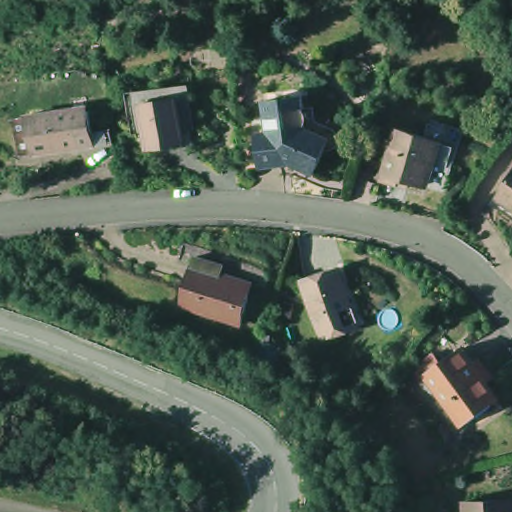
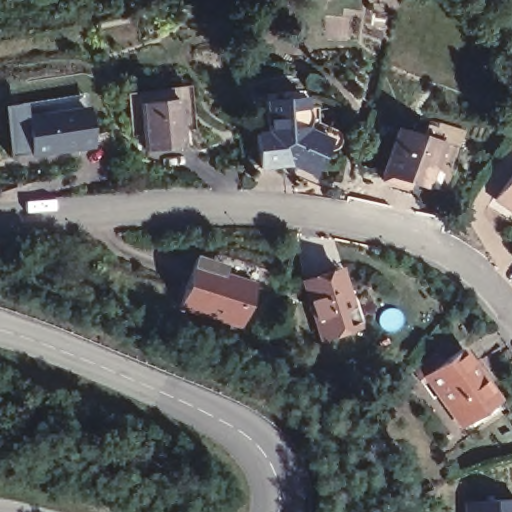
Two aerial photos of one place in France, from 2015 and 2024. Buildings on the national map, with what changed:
unchanged [(300,161),(290,160),(267,163),(263,129),(275,128),(271,96),(308,91),(310,104),(322,102),(325,116),(339,124),(345,129),(343,140),(342,143),(335,144),(331,143),(320,169),(300,161)]
unchanged [(190,139),(154,144),(148,99),(185,94),(190,139)]
unchanged [(25,116),(70,109),(72,114),(87,111),(92,145),(77,148),(31,154),(25,116)]
unchanged [(452,139),(446,160),(442,160),(435,180),(412,174),(410,180),(393,176),(408,126),(452,139)]
unchanged [(502,195),(512,180),(512,202),(502,195)]
unchanged [(232,257),(230,264),(261,274),(247,316),(187,297),(203,247),(223,254),(232,257)]
unchanged [(367,319),(332,332),(313,277),(348,264),(367,319)]
unchanged [(505,401),(502,397),(469,422),(435,379),(430,382),(422,371),(442,356),(450,364),(470,349),(482,366),(488,361),(500,378),(494,381),(505,395),(507,399),(505,401)]
unchanged [(467,423),(469,422),(472,425),(470,427),(467,423)]
unchanged [(512,501),(512,512),(475,512),(474,503),(512,501)]

